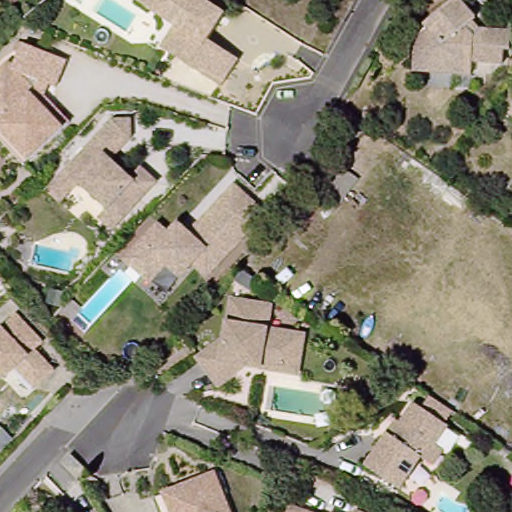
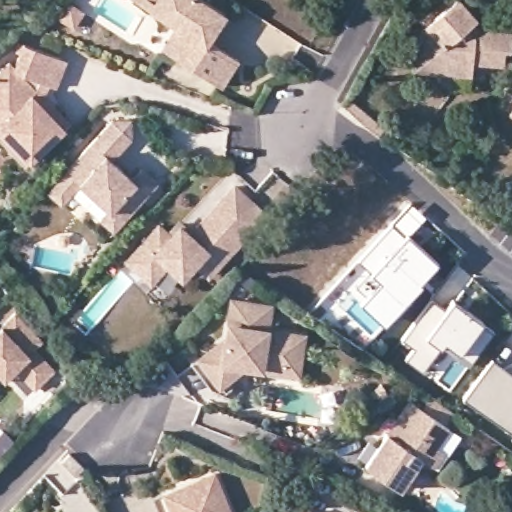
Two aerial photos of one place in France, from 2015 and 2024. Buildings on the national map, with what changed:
unchanged [(156,4),(151,11),(134,0),(203,0),(219,9),(227,15),(219,27),(210,41),(241,61),(223,88),(173,56),(163,49),(177,27),(174,15),(156,4)]
unchanged [(432,18),(451,0),(471,0),(487,27),(512,29),(512,61),(478,58),(477,81),(415,74),(415,47),(432,18)]
unchanged [(8,56),(12,60),(22,37),(58,52),(65,55),(54,82),(47,79),(42,90),(54,104),(67,118),(26,155),(0,127),(0,63),(8,56)]
unchanged [(104,216),(108,212),(112,207),(83,181),(76,188),(69,196),(65,201),(51,189),(63,176),(115,118),(134,118),(135,136),(115,158),(135,177),(145,166),(161,180),(121,224),(117,228),(104,216)]
unchanged [(274,211),(217,272),(203,260),(191,274),(176,261),(160,279),(136,257),(168,223),(178,233),(188,222),(198,232),(243,183),(274,211)]
new [(363,276),(372,284),(376,278),(358,259),(410,202),(425,215),(408,234),(437,259),(384,321),(359,299),(366,291),(356,282),(363,276)]
new [(434,300),(448,310),(455,300),(485,322),(485,323),(496,332),(474,362),(447,342),(425,373),(408,360),(416,349),(404,340),(434,300)]
unchanged [(244,405),(210,392),(191,366),(200,359),(227,339),(233,301),(271,307),(267,331),(304,337),(300,362),(297,374),(257,367),(252,399),(244,405)]
unchanged [(11,314),(37,342),(30,350),(50,371),(30,390),(11,369),(0,380),(0,324),(11,314)]
new [(492,363),(494,360),(512,373),(512,435),(465,400),(492,363)]
unchanged [(433,467),(425,461),(421,459),(400,490),(365,467),(387,435),(396,422),(400,425),(413,404),(447,427),(435,446),(443,452),(433,467)]
unchanged [(64,465),(73,456),(87,470),(79,479),(64,465)]
unchanged [(157,498),(169,493),(219,474),(234,512),(162,512),(157,498)]
unchanged [(290,506),(304,512),(287,512),(290,506)]

